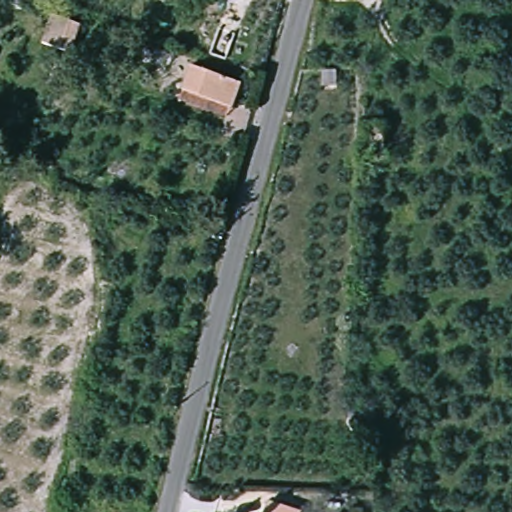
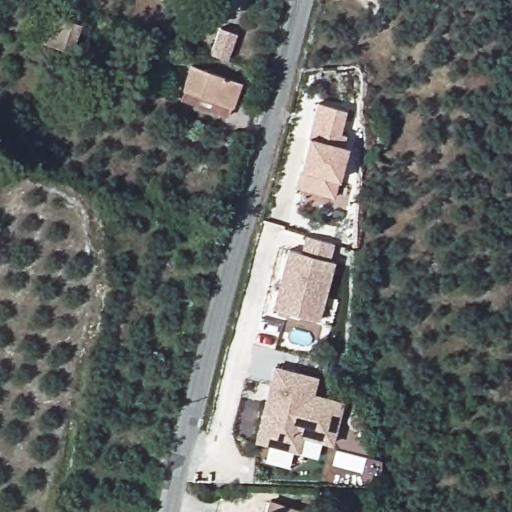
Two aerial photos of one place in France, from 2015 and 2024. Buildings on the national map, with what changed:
unchanged [(60,14),(78,22),(67,55),(46,45),(60,14)]
unchanged [(230,112),(182,94),(191,70),(239,88),(230,112)]
new [(345,111),(338,134),(345,136),(342,147),(347,149),(332,196),(296,187),(318,104),(345,111)]
demolished [(361,123),(385,125),(381,152),(358,150),(361,123)]
new [(333,262),(316,320),(273,310),(288,250),(333,262)]
new [(316,379),(312,396),(342,403),(331,445),(300,436),(296,450),(258,440),(275,369),(316,379)]
unchanged [(273,507),(288,512),(271,512),(273,507)]

